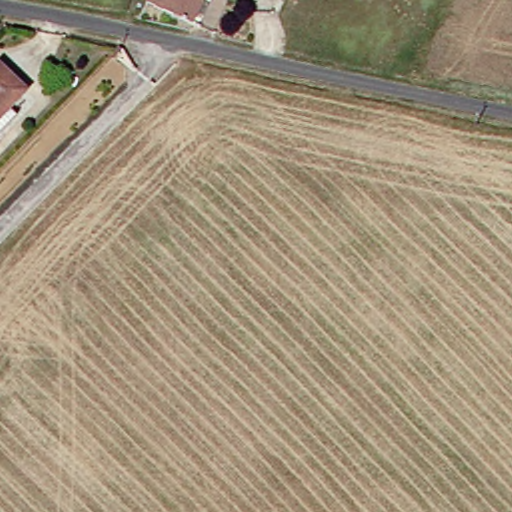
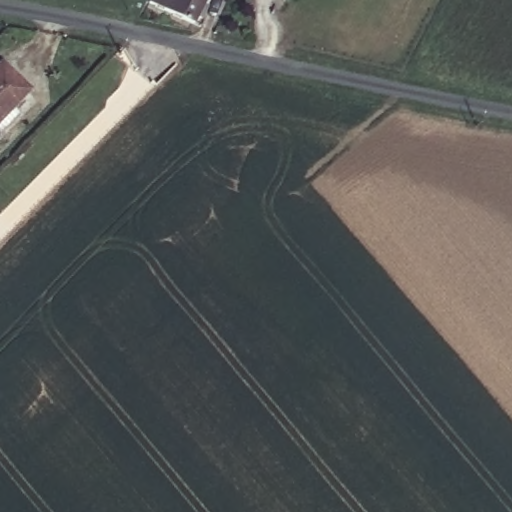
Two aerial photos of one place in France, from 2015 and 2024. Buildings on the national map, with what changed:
unchanged [(197,23),(155,2),(155,0),(209,0),(197,23)]
unchanged [(38,91),(21,109),(27,115),(6,136),(1,130),(0,130),(0,75),(11,64),(38,91)]

